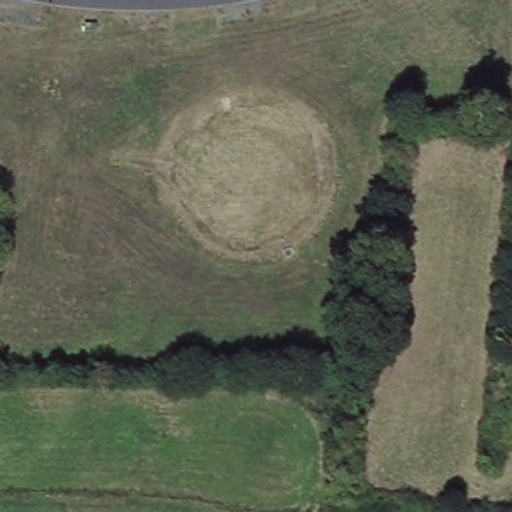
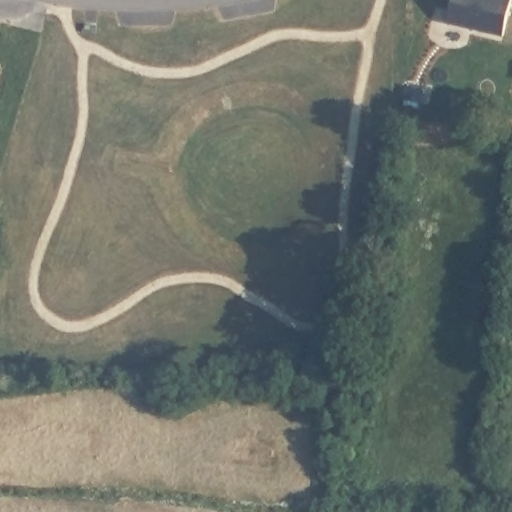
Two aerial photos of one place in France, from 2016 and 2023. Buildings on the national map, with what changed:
new [(510,0),(503,36),(447,24),(452,0),(510,0)]

